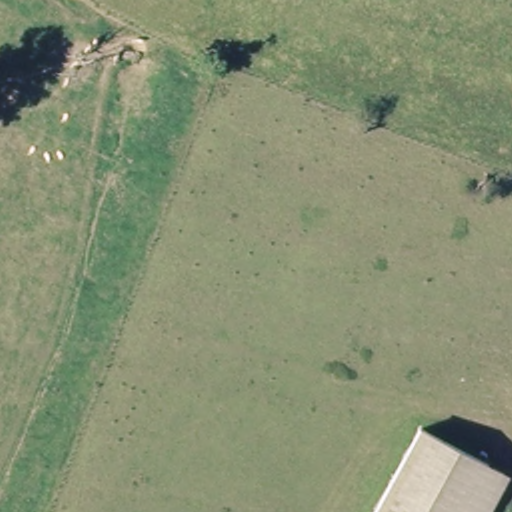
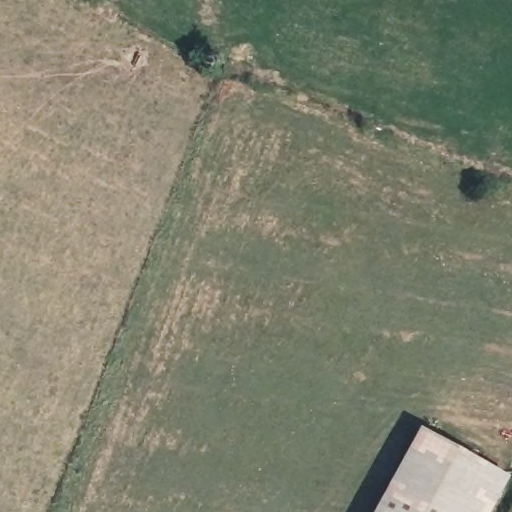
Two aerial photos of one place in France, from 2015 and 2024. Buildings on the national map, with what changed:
unchanged [(485,463),(462,512),(372,512),(413,428),(485,463)]
unchanged [(504,473),(485,512),(462,512),(485,463),(504,473)]

